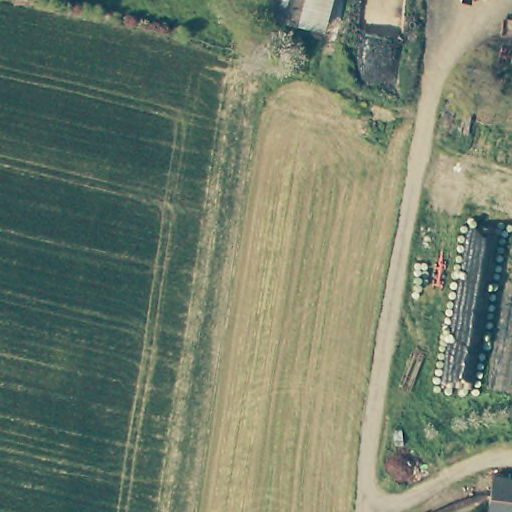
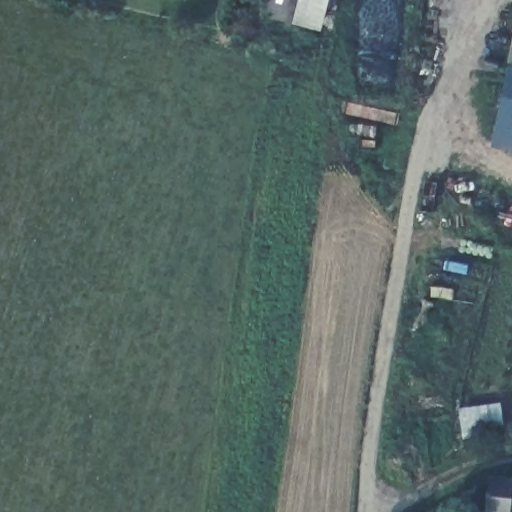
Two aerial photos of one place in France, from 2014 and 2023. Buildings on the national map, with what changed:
unchanged [(338,25),(281,13),(284,0),(344,0),(338,25)]
unchanged [(512,55),(512,61),(510,60),(512,55)]
new [(510,60),(512,61),(512,152),(492,147),(510,60)]

